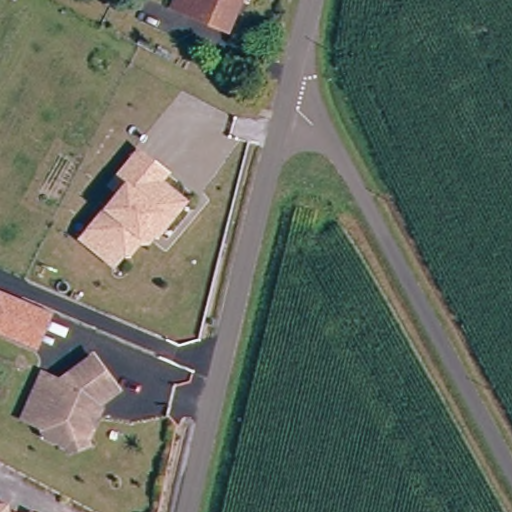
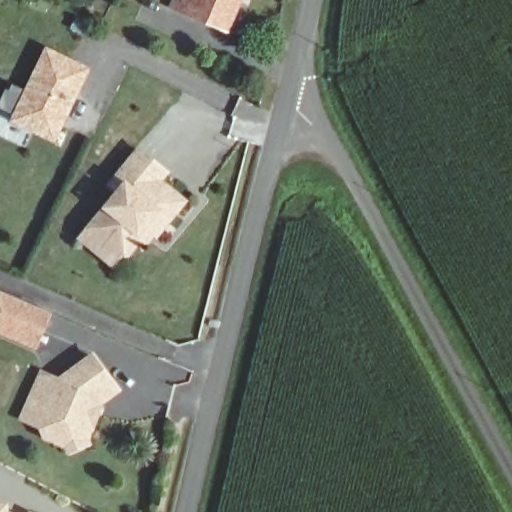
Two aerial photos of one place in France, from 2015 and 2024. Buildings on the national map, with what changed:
unchanged [(177,3),(178,0),(244,0),(233,27),(177,3)]
new [(23,88),(44,45),(89,67),(54,144),(7,121),(10,115),(0,110),(0,98),(9,81),(23,88)]
unchanged [(118,191),(109,184),(138,149),(165,172),(159,179),(184,200),(156,233),(154,230),(146,239),(139,241),(128,254),(120,255),(113,264),(80,237),(88,227),(118,191)]
unchanged [(38,351),(0,335),(0,291),(53,313),(38,351)]
unchanged [(71,444),(70,440),(49,430),(44,422),(25,413),(34,395),(45,369),(62,377),(95,353),(119,385),(95,403),(104,403),(98,417),(94,417),(85,434),(88,438),(71,444)]
unchanged [(0,506),(11,505),(11,512),(0,512),(0,506)]

